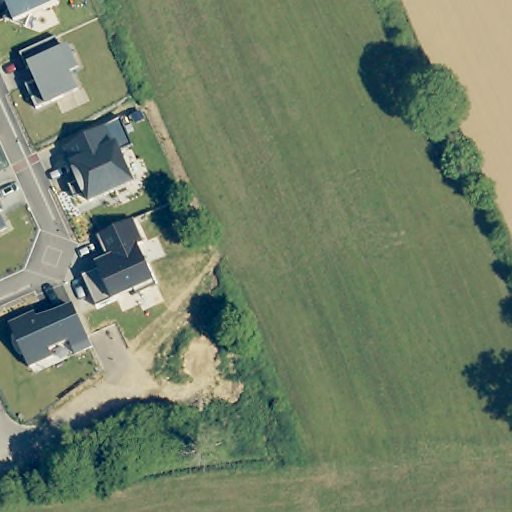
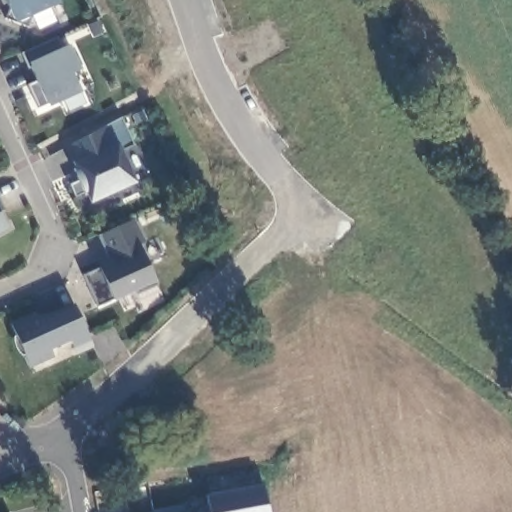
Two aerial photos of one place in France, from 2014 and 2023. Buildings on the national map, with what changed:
unchanged [(15,22),(5,0),(57,0),(59,4),(15,22)]
unchanged [(56,37),(62,47),(70,44),(81,70),(71,74),(80,94),(49,106),(36,108),(26,85),(35,82),(28,64),(20,54),(56,37)]
unchanged [(105,127),(121,119),(133,145),(121,151),(135,184),(90,202),(86,194),(84,195),(75,198),(69,186),(77,181),(69,162),(62,147),(105,127)]
unchanged [(0,212),(0,202),(5,211),(0,212)]
unchanged [(0,234),(0,212),(9,230),(0,234)]
unchanged [(133,219),(144,244),(140,246),(155,281),(156,286),(137,295),(135,291),(113,301),(96,307),(82,276),(98,269),(95,261),(107,256),(99,235),(133,219)]
unchanged [(35,312),(37,316),(52,312),(62,307),(74,302),(86,334),(92,348),(75,355),(70,342),(50,351),(53,357),(30,367),(10,323),(35,312)]
new [(208,505),(206,494),(262,484),(268,512),(159,512),(208,505)]

